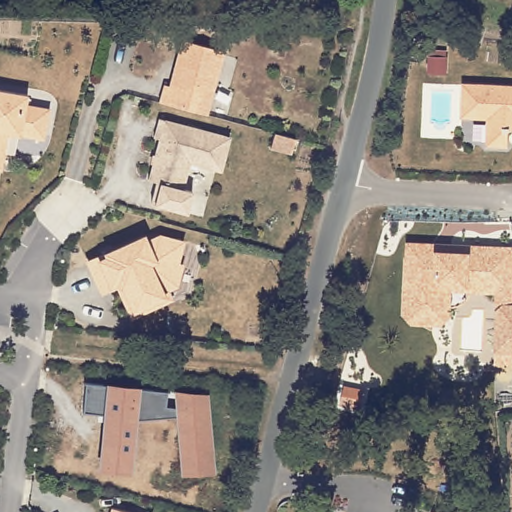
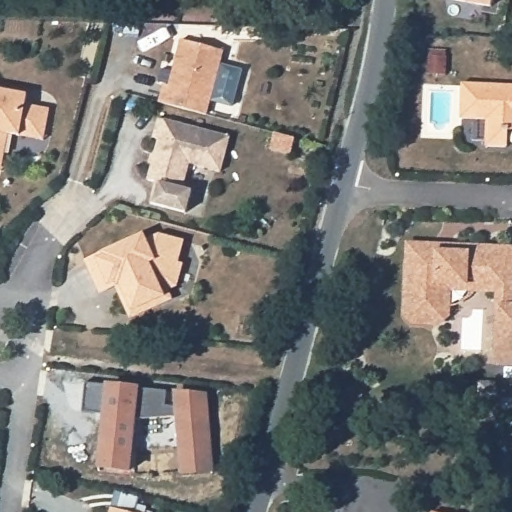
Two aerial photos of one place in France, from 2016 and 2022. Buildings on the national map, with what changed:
new [(491,6),(458,0),(492,0),(491,6)]
unchanged [(163,85),(168,86),(180,40),(223,52),(206,115),(193,112),(158,102),(163,85)]
unchanged [(484,147),(485,119),(459,118),(460,84),(507,85),(512,86),(512,131),(505,131),(504,147),(484,147)]
unchanged [(0,171),(0,90),(28,95),(26,105),(50,109),(45,135),(44,140),(20,136),(8,134),(1,171),(0,171)]
unchanged [(158,117),(229,136),(220,170),(188,162),(182,188),(147,178),(158,138),(153,136),(158,117)]
unchanged [(133,310),(124,290),(121,283),(105,290),(92,261),(146,236),(149,242),(163,235),(185,241),(179,263),(184,264),(179,284),(169,289),(173,298),(168,300),(149,309),(135,315),(133,310)]
unchanged [(471,291),(469,297),(461,302),(453,304),(453,315),(441,324),(411,325),(401,315),(407,239),(512,244),(512,303),(496,302),(494,302),(495,291),(471,291)]
unchanged [(512,349),(493,349),(494,302),(512,303),(512,349)]
unchanged [(213,468),(198,472),(191,446),(177,449),(169,418),(135,419),(130,469),(100,466),(104,420),(105,414),(83,411),(86,382),(193,393),(213,468)]
unchanged [(139,512),(113,512),(114,505),(139,512)]
unchanged [(440,512),(432,512),(432,510),(440,512)]

